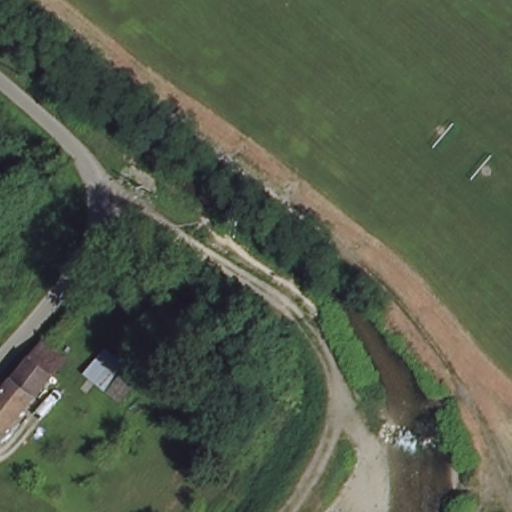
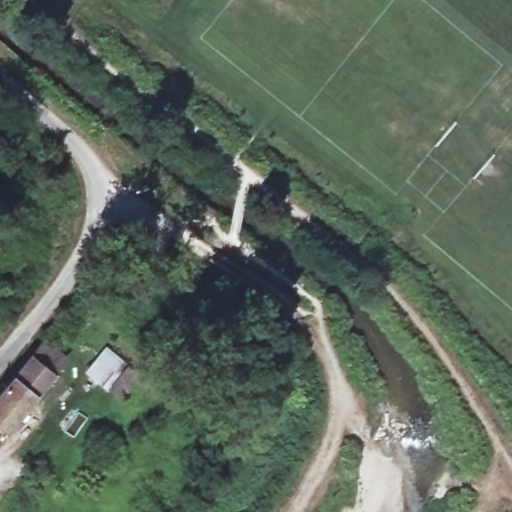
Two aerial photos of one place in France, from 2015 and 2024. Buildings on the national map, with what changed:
unchanged [(0,438),(0,402),(43,352),(57,337),(76,355),(64,370),(4,442),(0,438)]

